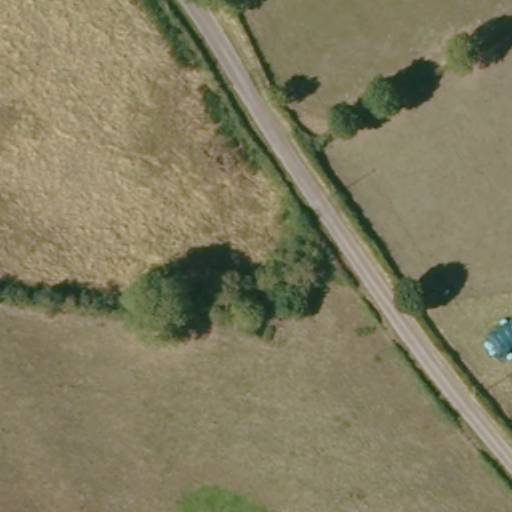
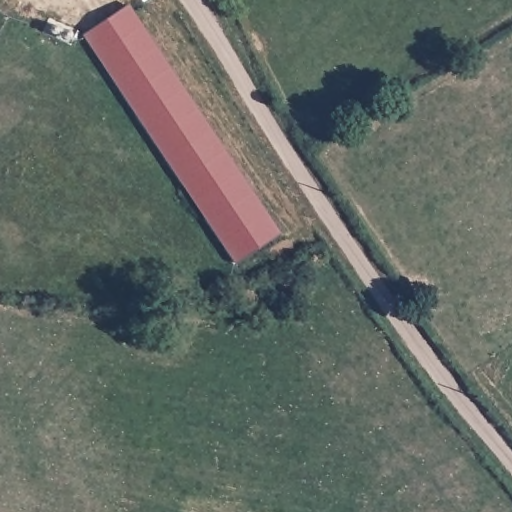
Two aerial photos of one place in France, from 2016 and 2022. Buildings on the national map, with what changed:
new [(83,34),(128,5),(279,233),(234,262),(83,34)]

